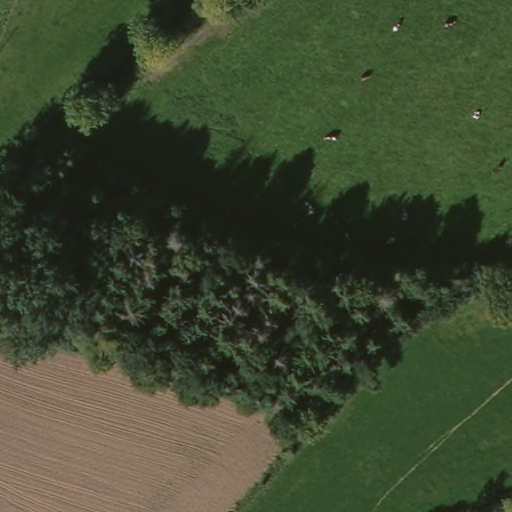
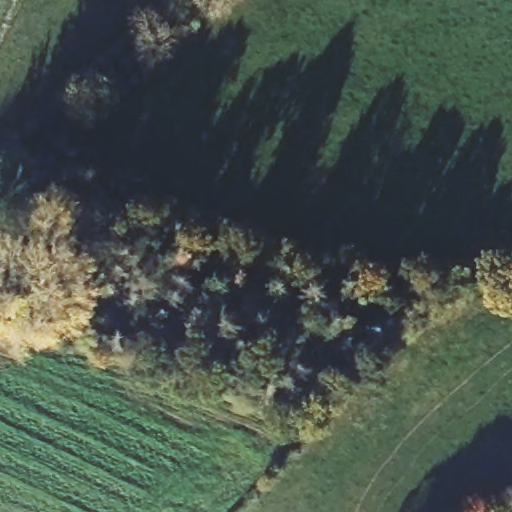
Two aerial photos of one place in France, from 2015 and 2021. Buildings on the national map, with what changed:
[]

